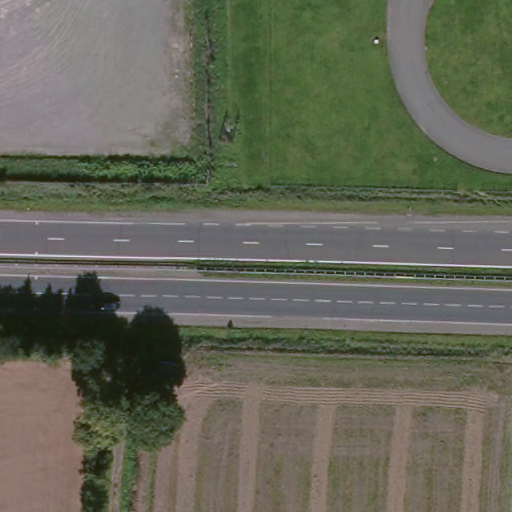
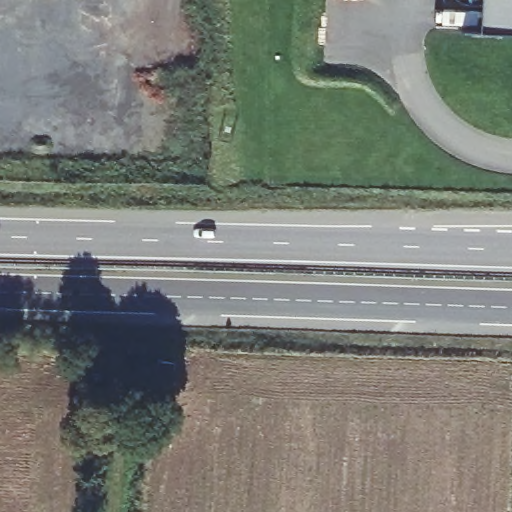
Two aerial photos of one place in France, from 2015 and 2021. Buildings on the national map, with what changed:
new [(484,31),(485,0),(512,0),(512,32),(484,31)]

